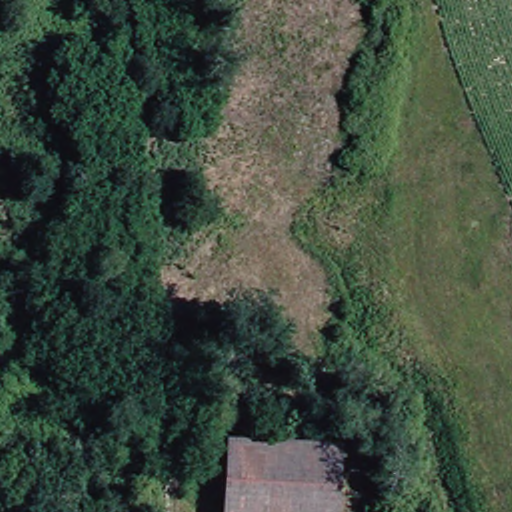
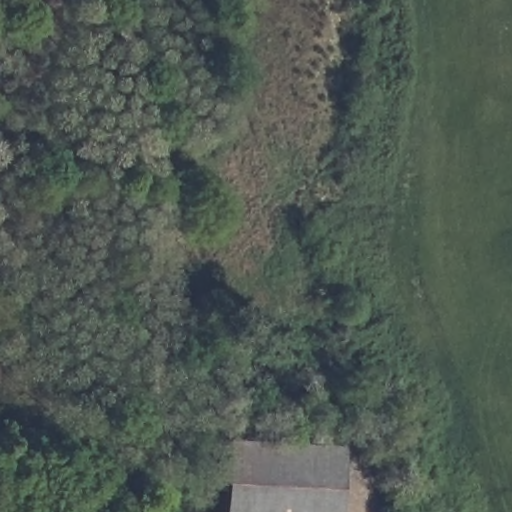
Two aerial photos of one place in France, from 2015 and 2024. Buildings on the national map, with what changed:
unchanged [(346,449),(343,512),(227,512),(231,442),(346,449)]

